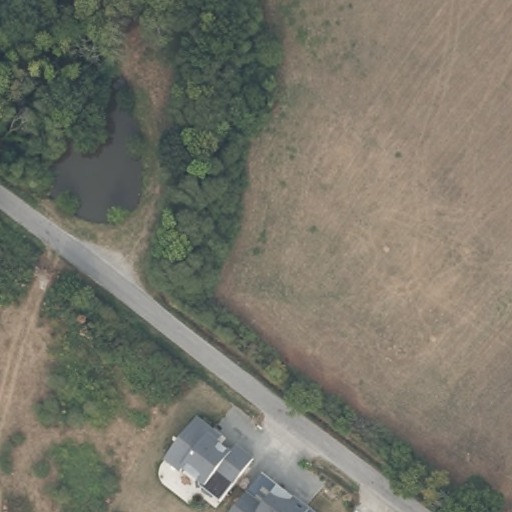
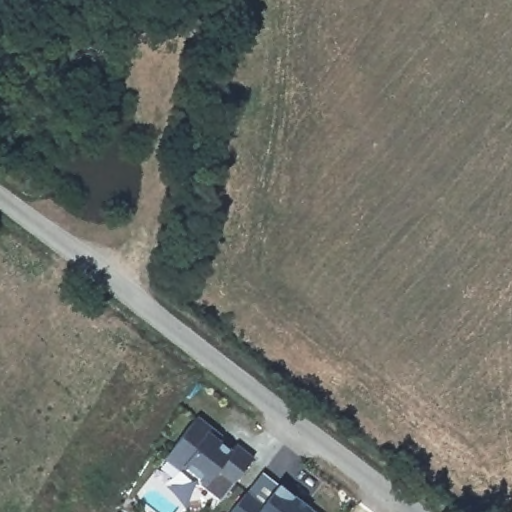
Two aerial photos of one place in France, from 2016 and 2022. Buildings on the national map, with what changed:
unchanged [(200,482),(165,458),(197,418),(234,449),(238,446),(253,459),(220,499),(200,482)]
unchanged [(280,485),(314,512),(232,512),(262,471),(280,485)]

